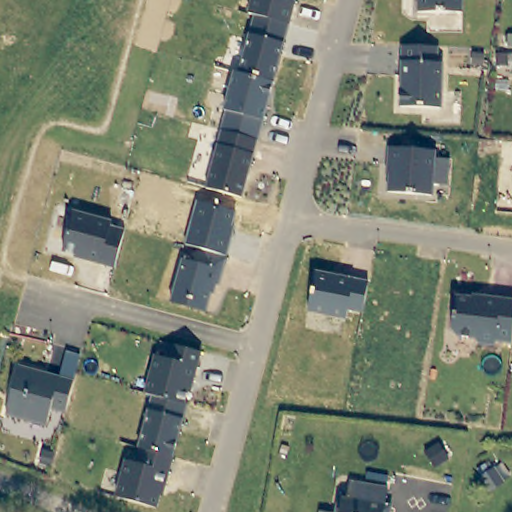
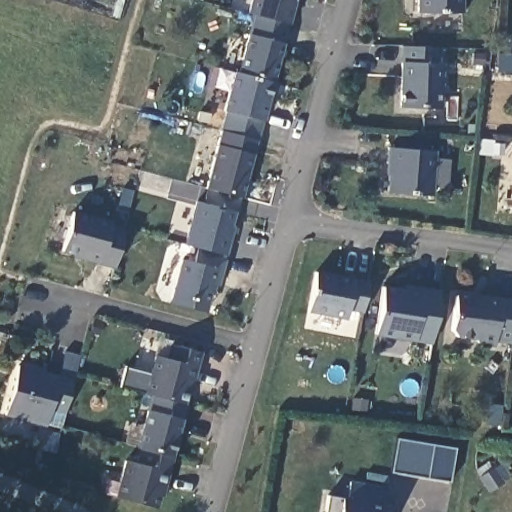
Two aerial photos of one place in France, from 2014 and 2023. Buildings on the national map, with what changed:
unchanged [(287,19),(251,10),(247,8),(250,0),(293,0),(287,19)]
unchanged [(461,9),(416,8),(417,0),(462,0),(461,9)]
unchanged [(425,42),(436,43),(436,59),(441,59),(439,104),(399,103),(401,41),(425,42)]
unchanged [(247,133),(220,125),(225,106),(223,105),(233,67),(272,77),(256,135),(247,133)]
unchanged [(220,125),(247,133),(256,135),(240,193),(204,183),(220,125)]
unchanged [(434,147),(430,192),(386,188),(388,160),(385,160),(387,143),(434,147)]
unchanged [(115,252),(112,262),(83,254),(83,251),(60,245),(71,206),(109,217),(108,222),(122,226),(115,252)]
unchanged [(193,305),(175,299),(168,298),(170,290),(180,254),(191,257),(195,243),(224,251),(216,281),(210,279),(205,300),(203,307),(193,305)]
unchanged [(346,304),(344,314),(306,306),(313,267),(366,278),(363,297),(361,307),(346,304)]
new [(434,343),(375,336),(382,283),(406,287),(406,283),(441,288),(434,343)]
unchanged [(509,339),(493,337),(492,342),(476,340),(472,335),(454,332),(448,326),(453,291),(479,295),(480,292),(512,297),(512,318),(511,326),(509,339)]
unchanged [(153,351),(165,354),(169,339),(198,347),(190,377),(187,376),(181,399),(168,395),(164,394),(151,391),(150,390),(143,388),(153,351)]
unchanged [(71,375),(62,407),(48,403),(43,420),(2,409),(16,360),(71,375)]
unchanged [(184,400),(169,452),(138,443),(136,443),(150,390),(151,391),(164,394),(168,395),(181,399),(183,399),(184,400)]
new [(449,482),(392,471),(398,438),(455,448),(449,482)]
unchanged [(123,455),(134,458),(138,443),(169,452),(161,482),(159,481),(153,504),(112,494),(123,455)]
unchanged [(337,509),(340,492),(349,494),(352,477),(388,484),(385,501),(392,503),(390,512),(340,512),(340,510),(337,509)]

